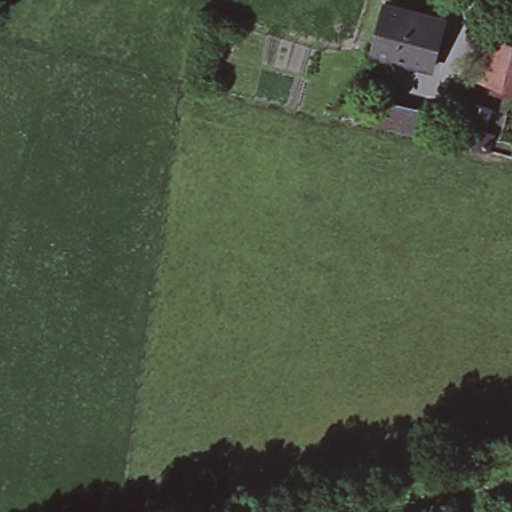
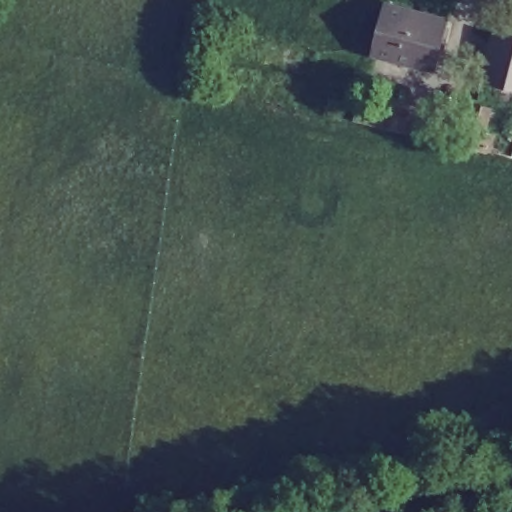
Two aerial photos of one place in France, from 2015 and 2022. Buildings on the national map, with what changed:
unchanged [(443,19),(430,67),(371,51),(384,3),(443,19)]
unchanged [(512,38),(512,89),(479,80),(491,32),(512,38)]
unchanged [(423,108),(417,134),(360,118),(366,93),(423,108)]
unchanged [(487,107),(481,132),(490,135),(486,152),(462,146),(472,105),(487,107)]

